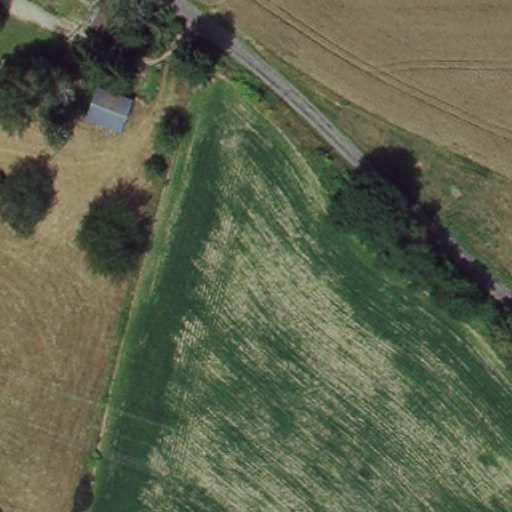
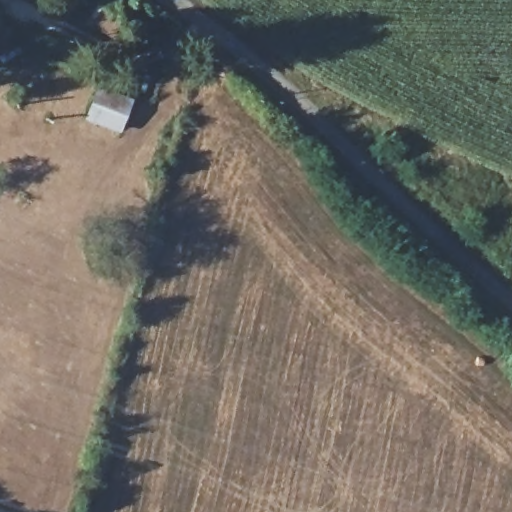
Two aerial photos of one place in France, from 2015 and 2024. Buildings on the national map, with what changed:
unchanged [(123,134),(78,120),(92,79),(134,95),(123,134)]

